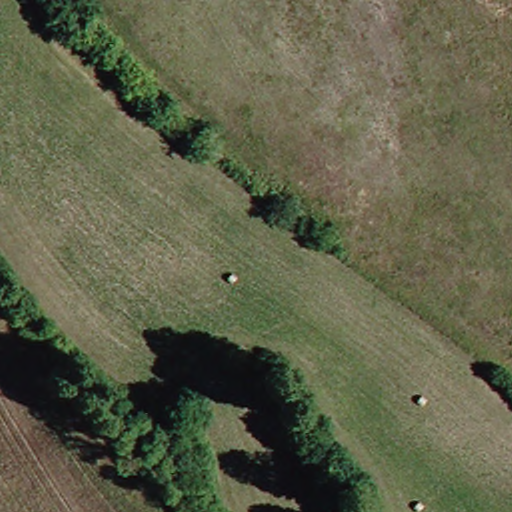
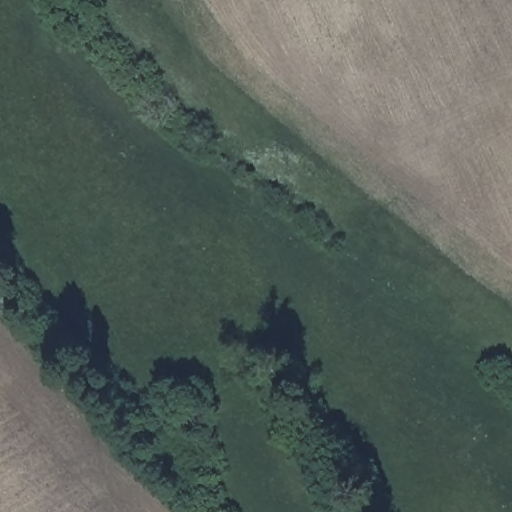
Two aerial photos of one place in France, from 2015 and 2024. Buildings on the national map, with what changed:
[]

